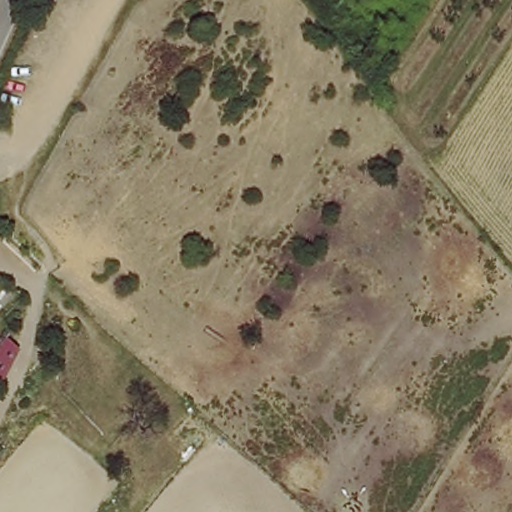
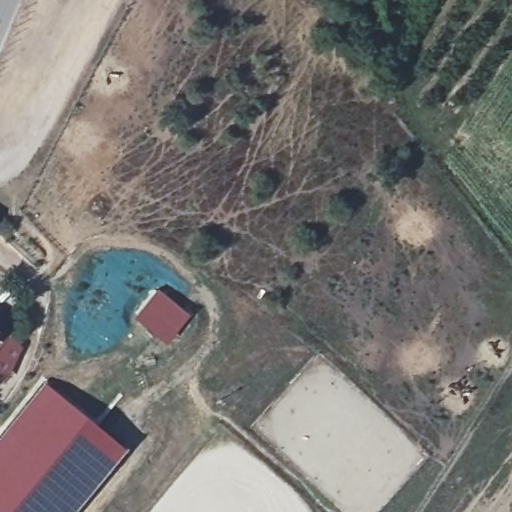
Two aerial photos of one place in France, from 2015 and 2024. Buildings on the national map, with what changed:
new [(24,346),(0,378),(0,340),(6,332),(24,346)]
new [(122,445),(69,512),(0,512),(0,432),(43,380),(122,445)]

